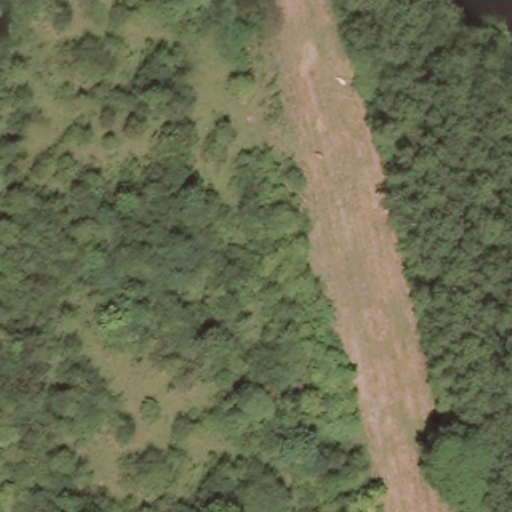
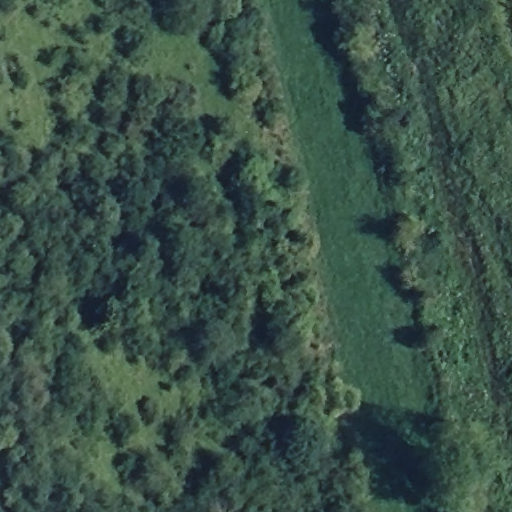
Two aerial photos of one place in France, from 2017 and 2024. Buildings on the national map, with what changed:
[]

